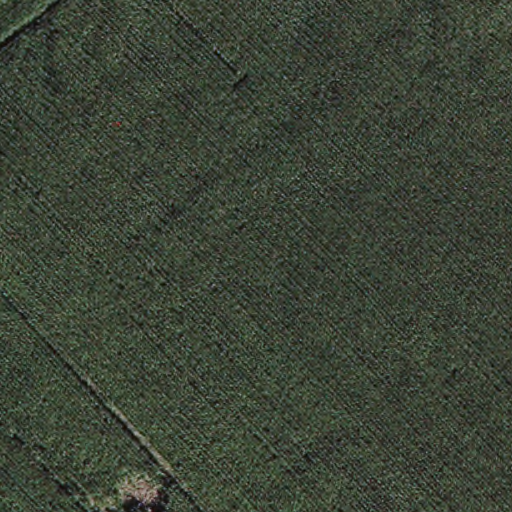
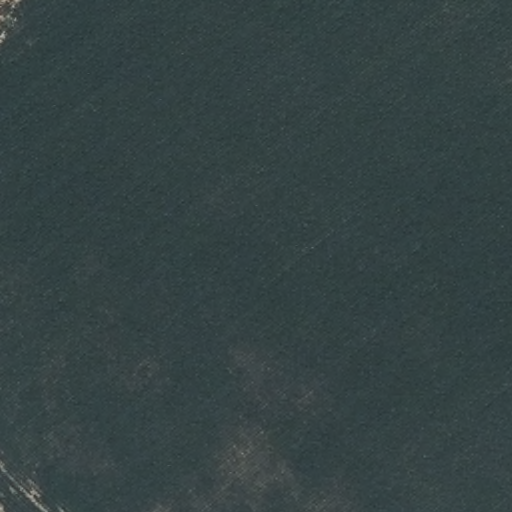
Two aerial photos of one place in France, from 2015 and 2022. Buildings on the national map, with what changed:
[]

